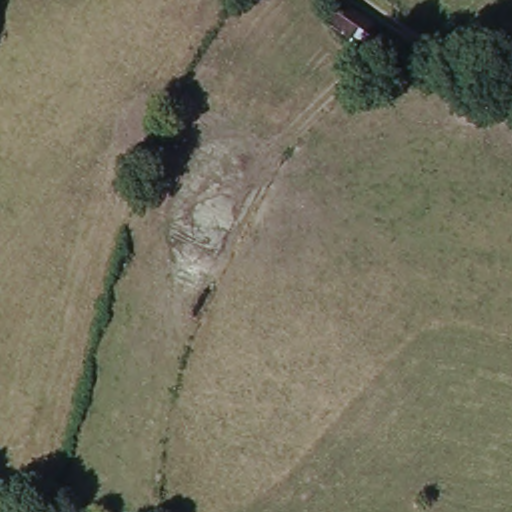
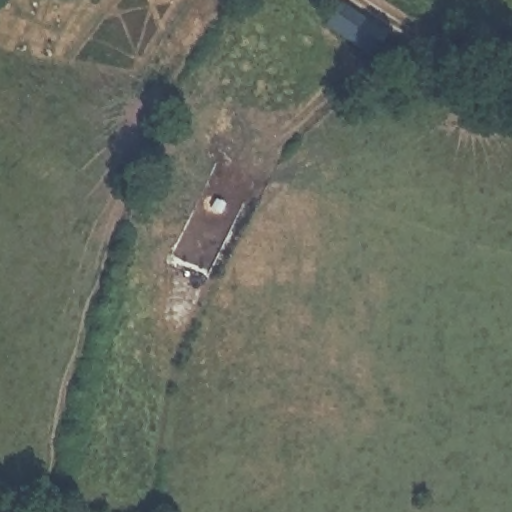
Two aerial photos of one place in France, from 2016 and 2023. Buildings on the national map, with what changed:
unchanged [(373,56),(332,25),(344,4),(391,35),(373,56)]

